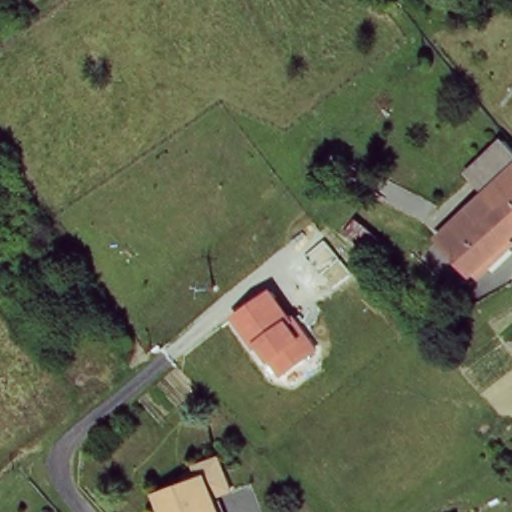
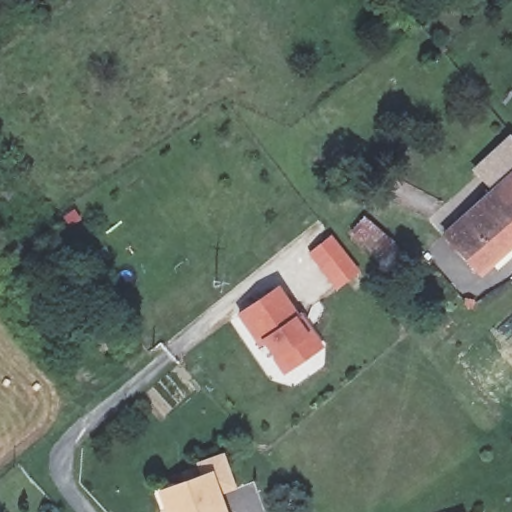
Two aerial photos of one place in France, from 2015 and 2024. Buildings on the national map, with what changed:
unchanged [(495,192),(474,169),(509,138),(512,142),(512,176),(495,192)]
unchanged [(478,278),(444,240),(495,192),(512,176),(512,248),(478,278)]
new [(307,255),(330,236),(360,273),(337,292),(307,255)]
unchanged [(265,347),(260,350),(239,317),(280,287),(324,350),(284,376),(265,347)]
unchanged [(202,476),(197,464),(224,453),(237,488),(220,496),(226,512),(165,512),(157,491),(202,476)]

